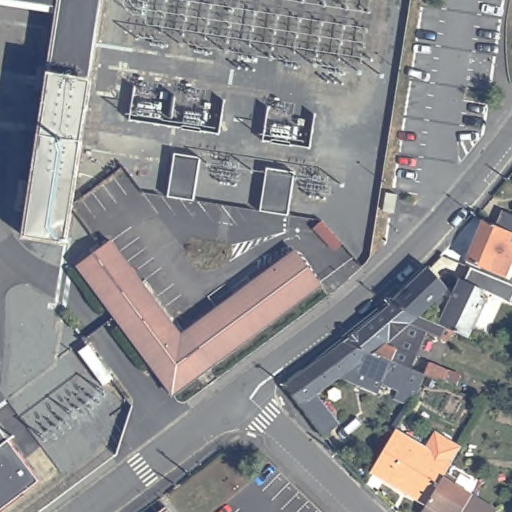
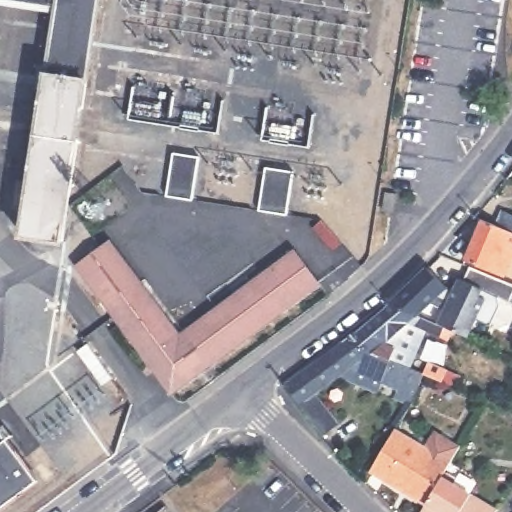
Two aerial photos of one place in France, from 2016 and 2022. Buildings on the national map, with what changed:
unchanged [(25,0),(104,0),(70,219),(31,214),(34,189),(23,187),(29,159),(39,160),(61,5),(25,0)]
unchanged [(173,157),(199,161),(194,204),(167,200),(173,157)]
unchanged [(287,216),(260,213),(266,169),(293,173),(287,216)]
unchanged [(500,224),(506,210),(512,213),(512,229),(500,224)]
unchanged [(487,219),(500,224),(512,229),(512,268),(510,274),(495,268),(471,258),(487,219)]
unchanged [(86,262),(116,239),(187,332),(303,244),(329,280),(183,389),(86,262)]
unchanged [(395,302),(433,266),(452,287),(447,294),(458,298),(466,279),(469,280),(475,266),(512,281),(512,302),(487,291),(485,295),(493,298),(478,338),(460,331),(395,302)]
unchanged [(455,340),(430,329),(413,367),(350,340),(395,302),(460,331),(455,340)]
unchanged [(294,382),(350,340),(413,367),(429,373),(434,361),(453,370),(448,381),(430,374),(421,396),(355,368),(320,394),(344,424),(330,434),(292,385),(294,382)]
unchanged [(104,386),(79,353),(88,346),(114,379),(104,386)]
unchanged [(372,471),(397,429),(426,446),(436,430),(461,444),(446,471),(427,504),(372,471)]
unchanged [(0,508),(0,431),(6,439),(37,480),(0,508)]
unchanged [(460,480),(458,486),(498,509),(497,512),(422,512),(427,504),(446,471),(460,480)]
unchanged [(171,504),(177,512),(160,512),(171,504)]

